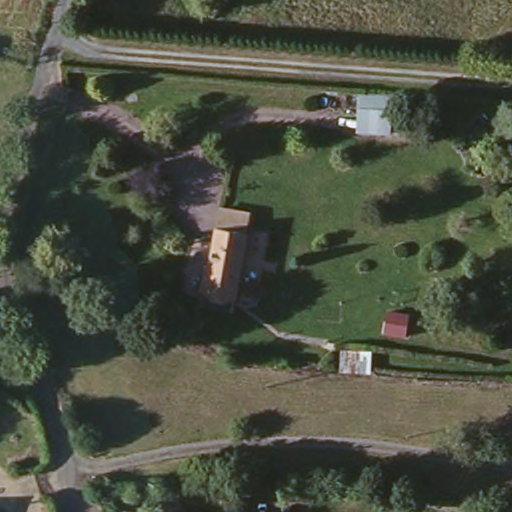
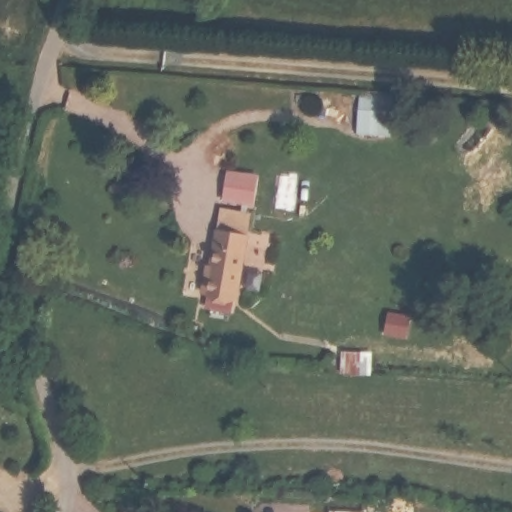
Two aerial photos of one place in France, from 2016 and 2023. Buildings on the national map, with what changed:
unchanged [(355,135),(358,108),(359,98),(391,101),(390,111),(387,138),(355,135)]
new [(257,174),(252,204),(221,198),(227,169),(257,174)]
unchanged [(208,272),(214,236),(218,217),(248,222),(245,241),(234,304),(204,298),(199,297),(203,270),(208,272)]

